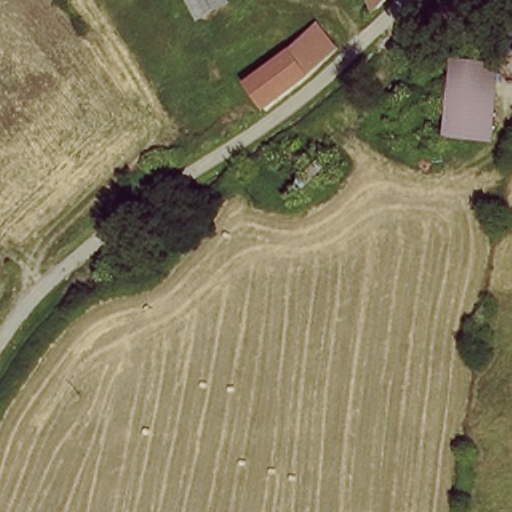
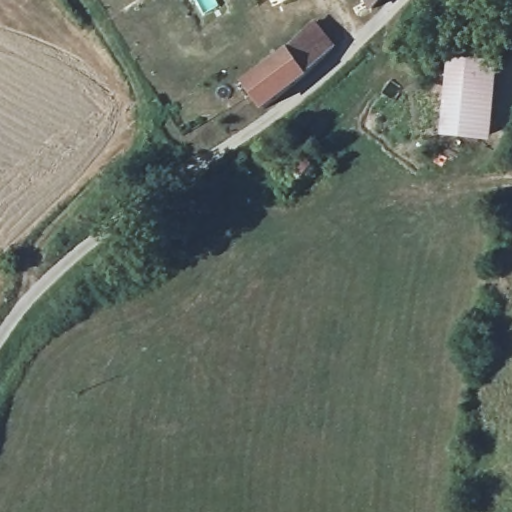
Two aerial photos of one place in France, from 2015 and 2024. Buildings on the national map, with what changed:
unchanged [(371,10),(366,0),(381,0),(371,10)]
unchanged [(307,76),(261,111),(242,88),(288,55),(307,31),(332,52),(307,76)]
unchanged [(495,65),(486,142),(441,136),(450,60),(495,65)]

